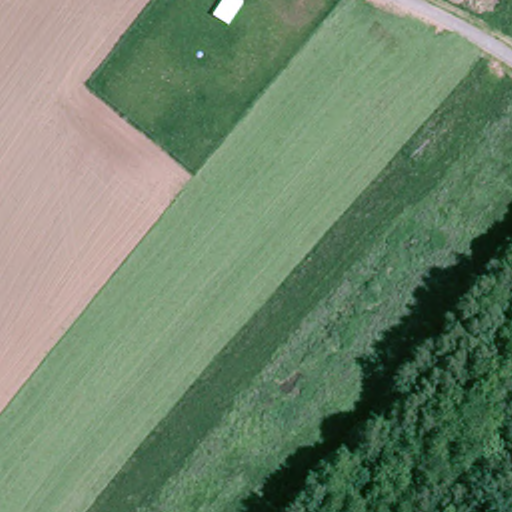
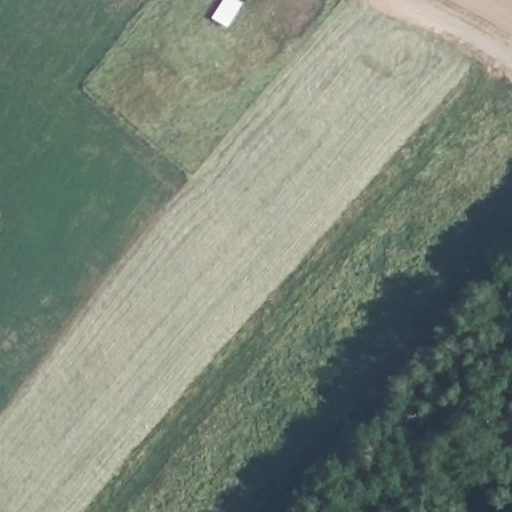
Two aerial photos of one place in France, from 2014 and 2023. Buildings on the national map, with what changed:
unchanged [(234,29),(230,33),(217,24),(232,0),(247,9),(234,29)]

